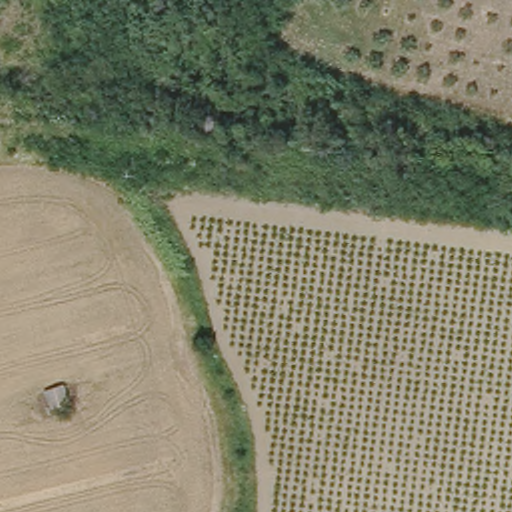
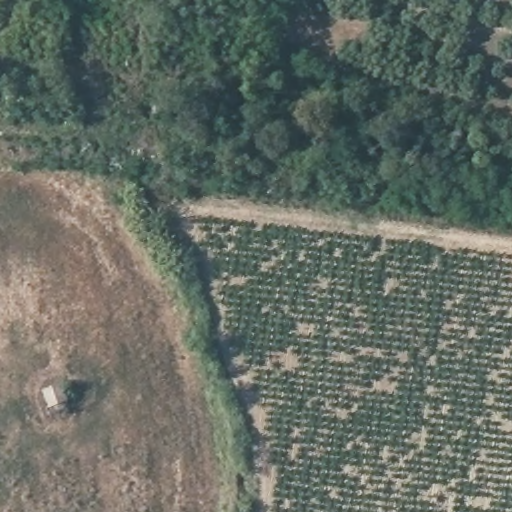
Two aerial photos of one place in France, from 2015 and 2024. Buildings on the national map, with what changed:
unchanged [(40,390),(60,383),(68,403),(49,411),(40,390)]

